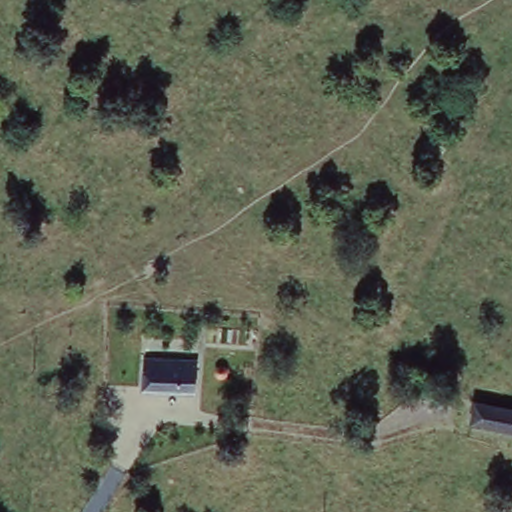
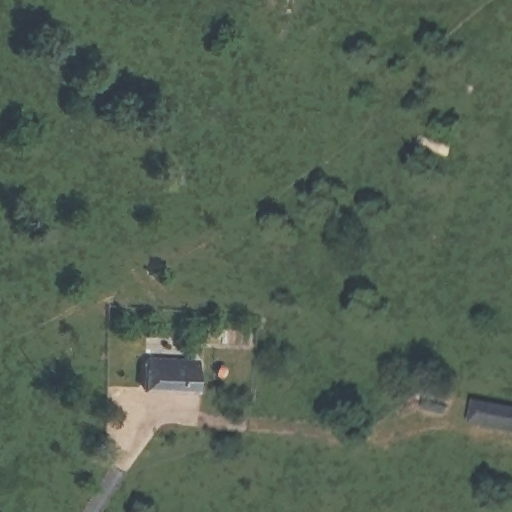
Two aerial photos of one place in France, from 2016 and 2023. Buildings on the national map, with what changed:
unchanged [(143,391),(145,359),(207,364),(204,394),(143,391)]
unchanged [(389,383),(401,387),(396,402),(383,397),(389,383)]
unchanged [(244,399),(244,400),(244,401),(243,401),(243,402),(243,403),(242,403),(242,404),(241,405),(240,405),(240,406),(239,406),(238,406),(238,407),(237,407),(236,407),(234,407),(233,407),(233,406),(232,406),(231,406),(230,406),(230,405),(229,405),(229,404),(229,403),(228,403),(228,402),(227,402),(227,401),(227,400),(227,399),(227,398),(227,397),(227,396),(227,395),(227,394),(227,393),(228,393),(228,392),(229,392),(229,391),(230,391),(230,390),(231,390),(232,390),(233,390),(233,389),(234,389),(236,389),(237,389),(238,389),(238,390),(239,390),(240,390),(240,391),(241,391),(241,392),(242,392),(243,392),(243,393),(243,394),(243,395),(244,395),(244,396),(244,397),(244,398),(244,399)]
unchanged [(512,406),(512,427),(472,421),(475,401),(512,406)]

